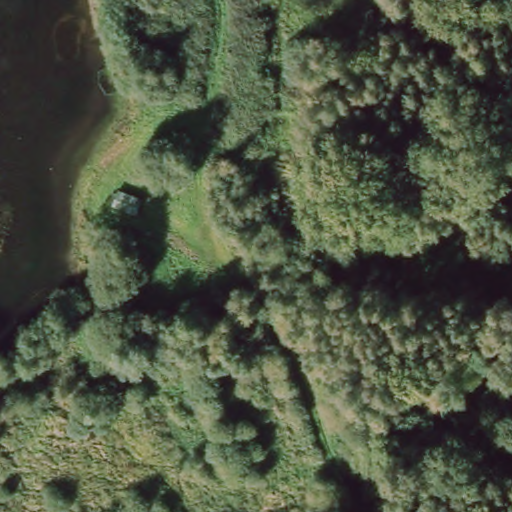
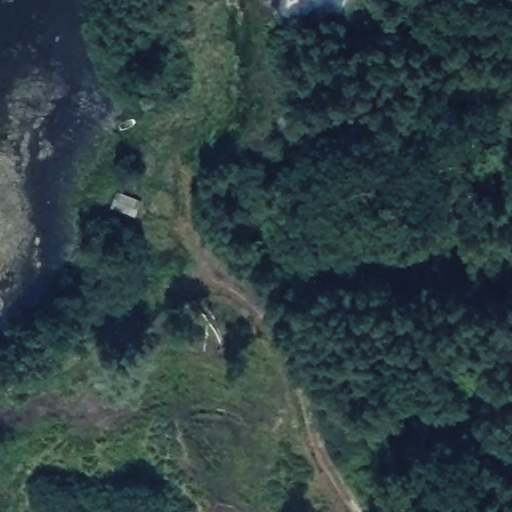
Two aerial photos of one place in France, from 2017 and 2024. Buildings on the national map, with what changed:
unchanged [(144,201),(136,218),(107,206),(113,188),(144,201)]

